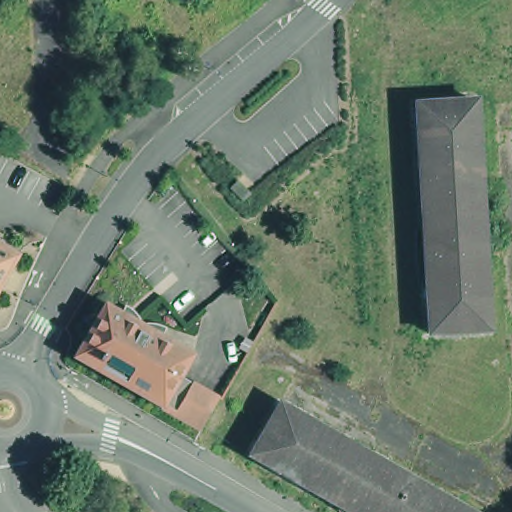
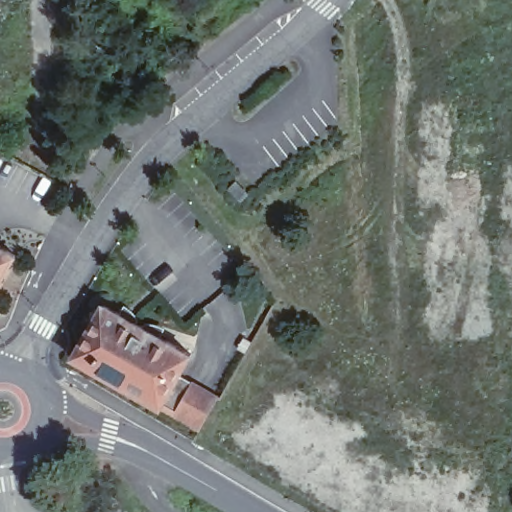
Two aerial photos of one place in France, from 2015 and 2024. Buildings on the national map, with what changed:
demolished [(477,102),(485,330),(424,332),(415,103),(477,102)]
unchanged [(0,289),(0,243),(20,254),(0,289)]
unchanged [(66,357),(95,305),(184,355),(172,376),(155,407),(66,357)]
unchanged [(172,376),(212,398),(195,429),(155,407),(172,376)]
demolished [(347,506),(249,450),(279,399),(334,430),(347,506)]
demolished [(359,512),(347,506),(334,430),(479,512),(359,512)]

